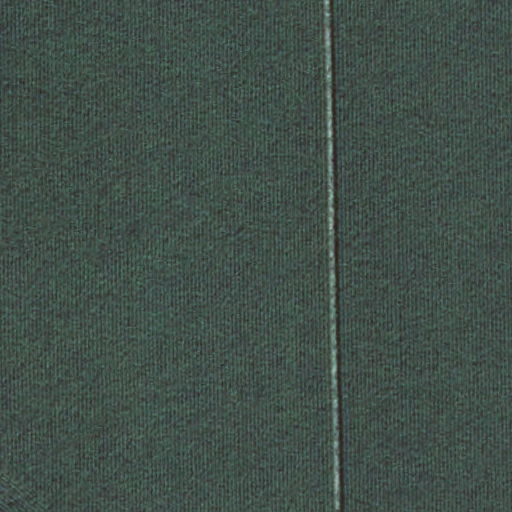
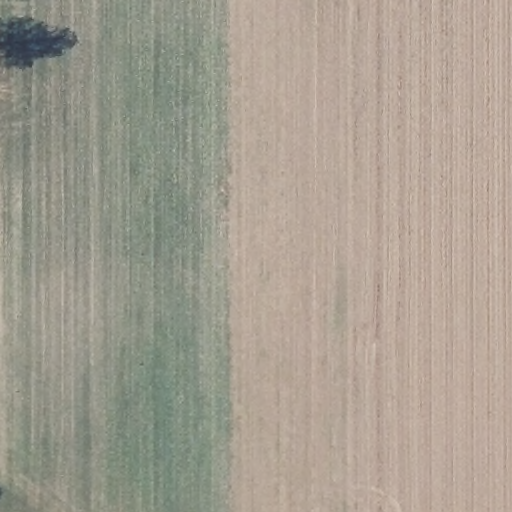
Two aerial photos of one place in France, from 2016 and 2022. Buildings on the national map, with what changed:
[]

